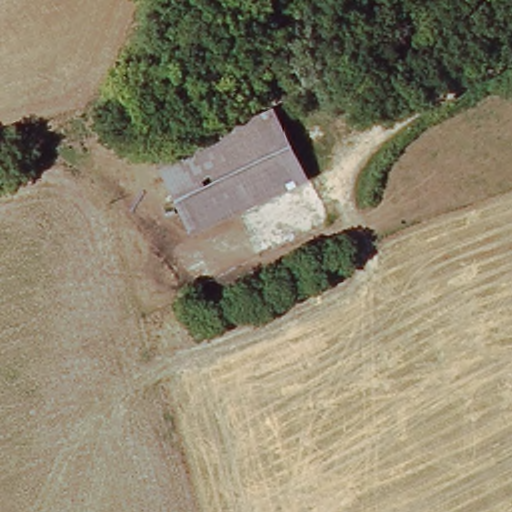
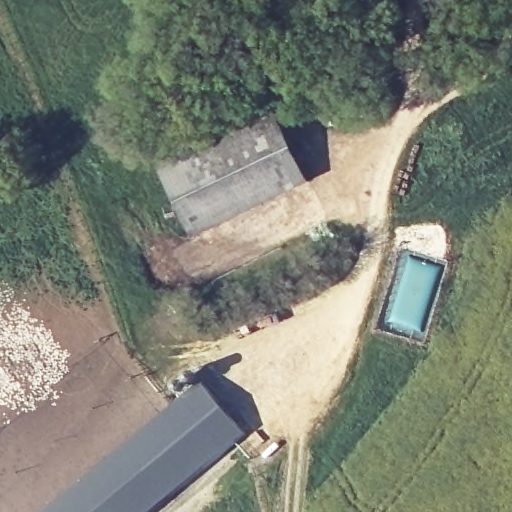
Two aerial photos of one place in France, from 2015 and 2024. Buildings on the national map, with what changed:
unchanged [(310,179),(196,230),(166,164),(280,113),(310,179)]
new [(202,381),(243,429),(144,512),(47,512),(202,381)]

